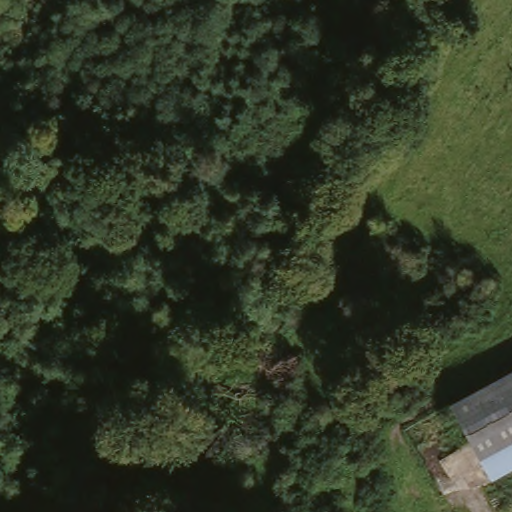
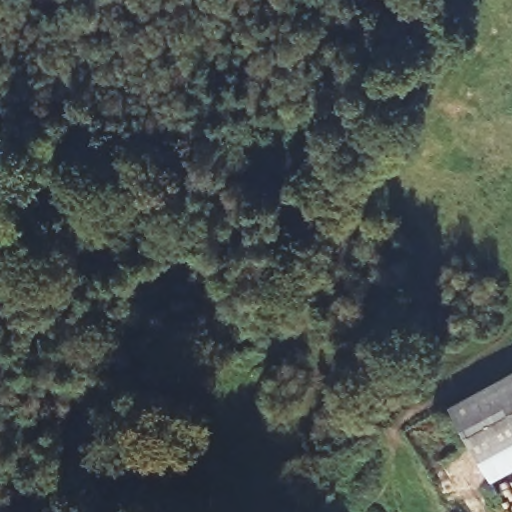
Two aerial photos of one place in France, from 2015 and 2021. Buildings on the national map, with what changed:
unchanged [(453,405),(512,368),(512,473),(493,485),(453,405)]

